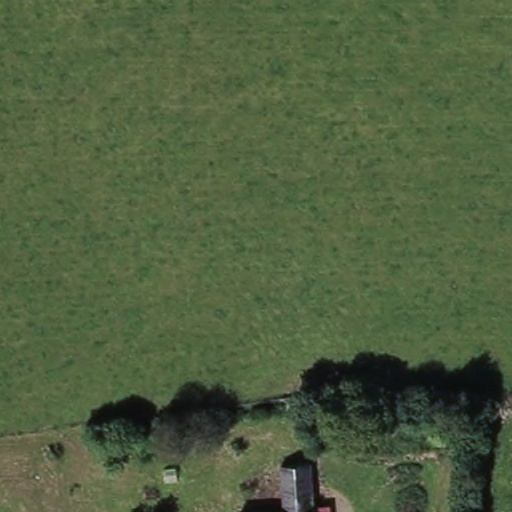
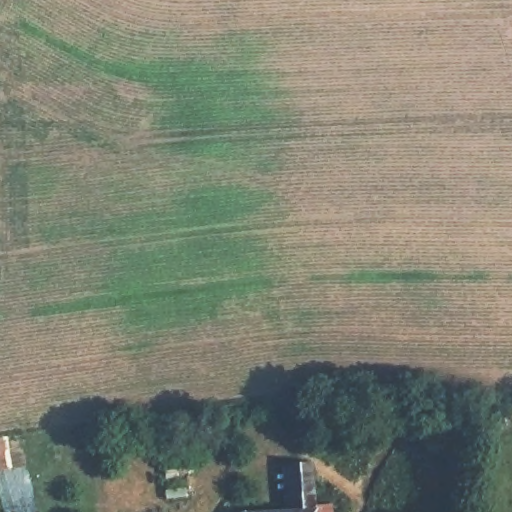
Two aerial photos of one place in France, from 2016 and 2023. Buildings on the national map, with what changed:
unchanged [(334,393),(333,414),(313,413),(314,395),(334,393)]
unchanged [(315,465),(315,496),(335,495),(335,512),(287,512),(286,465),(315,465)]

